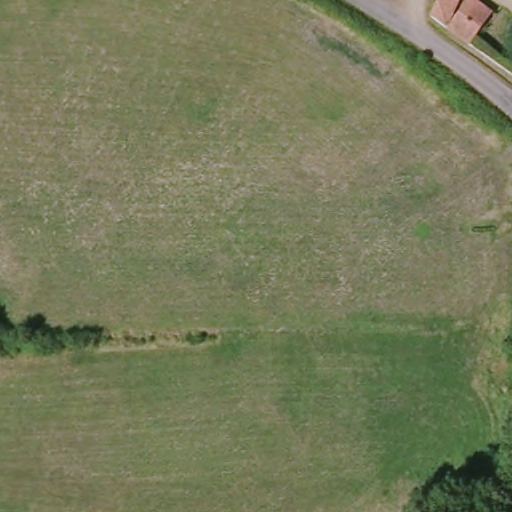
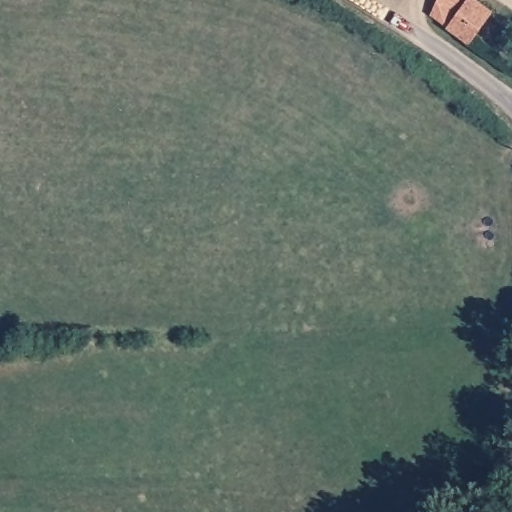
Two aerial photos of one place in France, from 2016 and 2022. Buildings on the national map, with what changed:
unchanged [(441,30),(428,21),(438,0),(455,0),(441,30)]
unchanged [(471,1),(491,16),(468,49),(446,34),(471,1)]

